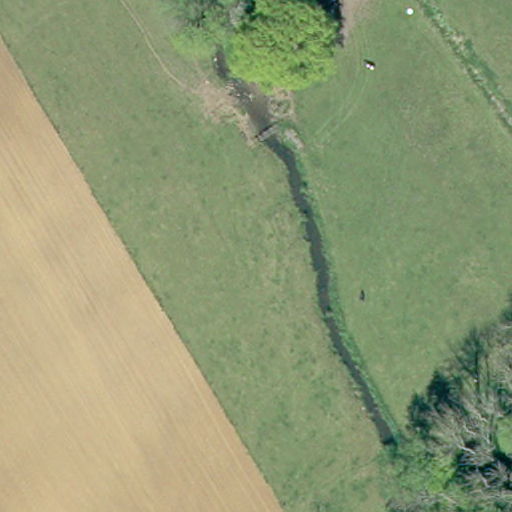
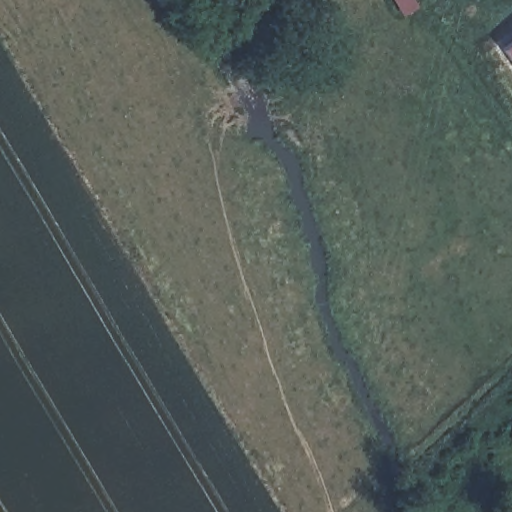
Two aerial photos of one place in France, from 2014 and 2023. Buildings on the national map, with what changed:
new [(499,48),(512,39),(512,66),(499,48)]

